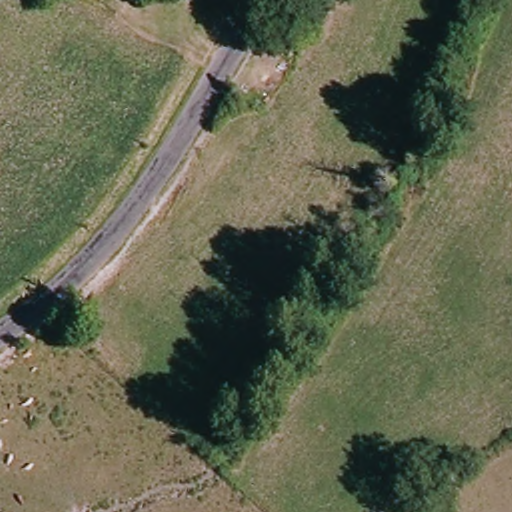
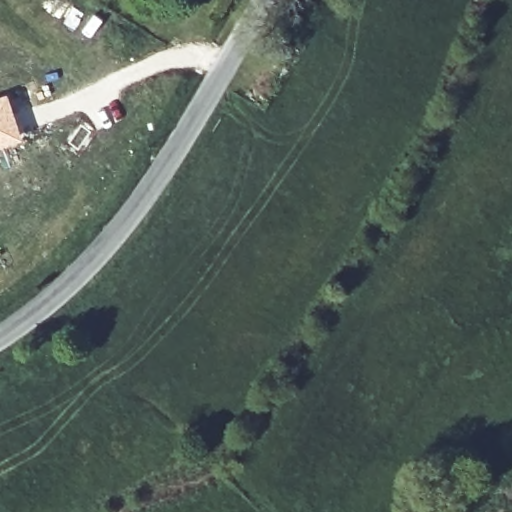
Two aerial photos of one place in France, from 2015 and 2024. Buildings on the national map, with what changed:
new [(7,92),(24,139),(0,148),(0,95),(7,92)]

